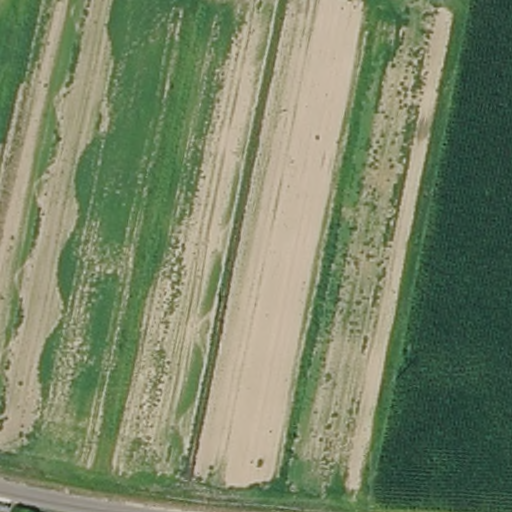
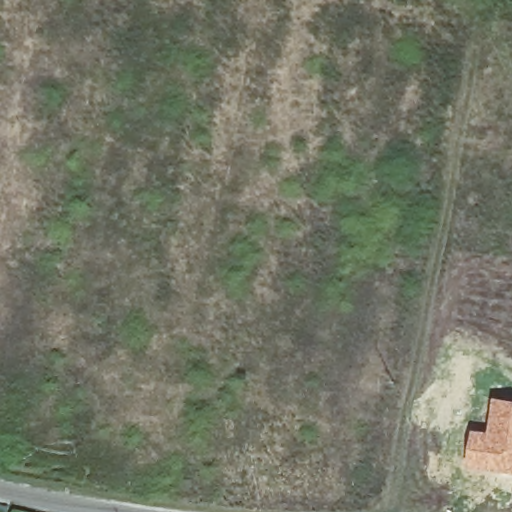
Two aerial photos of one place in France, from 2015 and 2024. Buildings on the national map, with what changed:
new [(488,430),(495,396),(512,399),(512,475),(470,469),(475,429),(488,430)]

